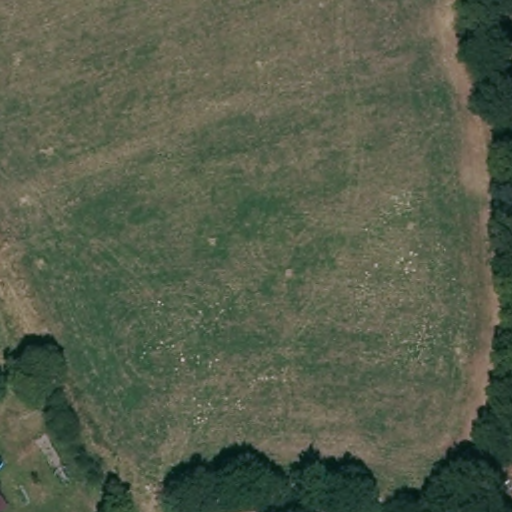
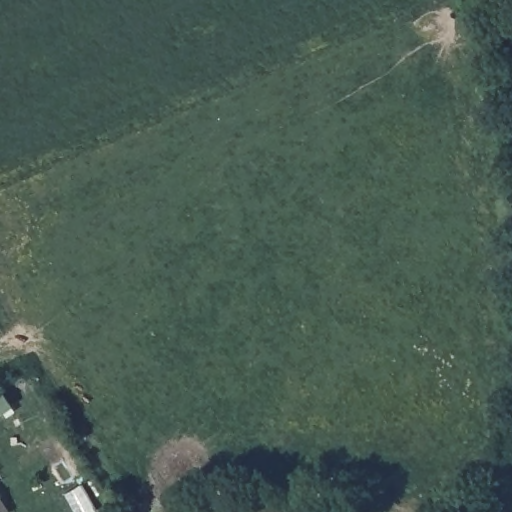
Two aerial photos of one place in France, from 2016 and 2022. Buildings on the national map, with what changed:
[]

